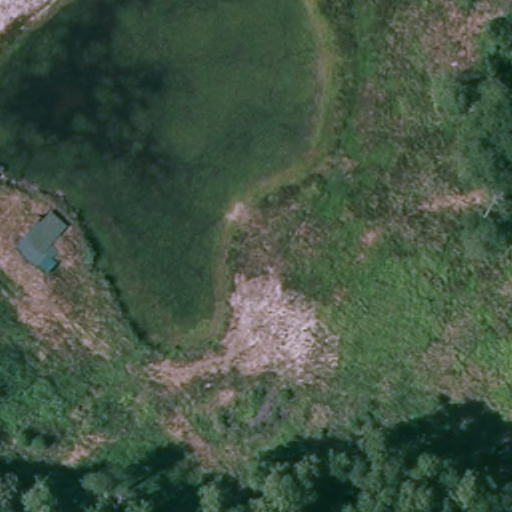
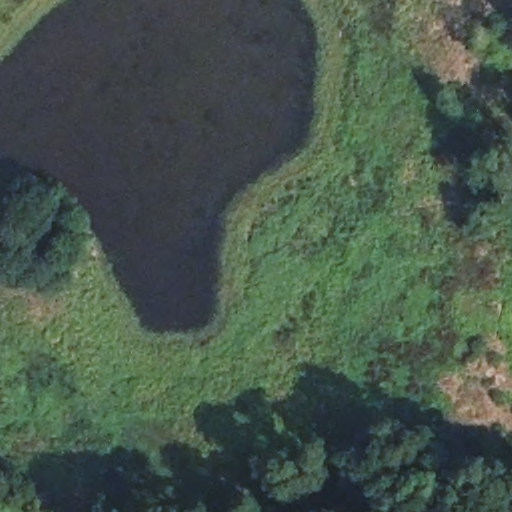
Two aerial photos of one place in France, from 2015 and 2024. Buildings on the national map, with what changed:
unchanged [(66,224),(50,243),(58,250),(52,257),(58,263),(46,274),(15,248),(50,213),(66,224)]

